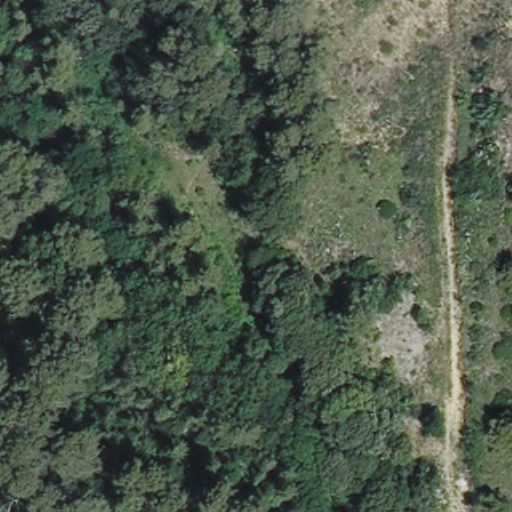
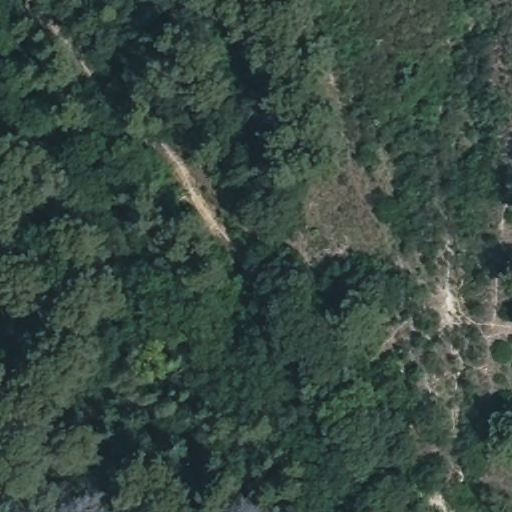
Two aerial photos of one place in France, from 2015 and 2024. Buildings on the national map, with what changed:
[]

